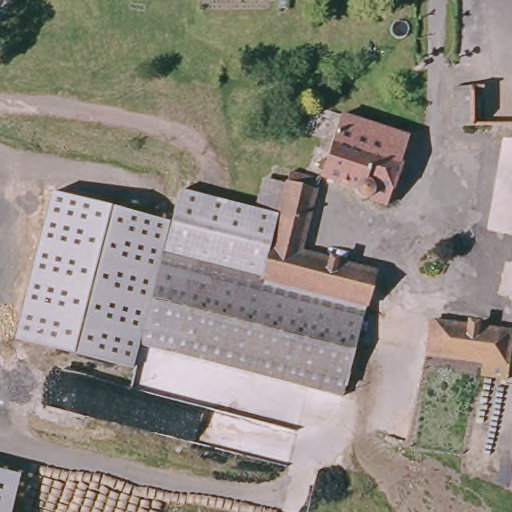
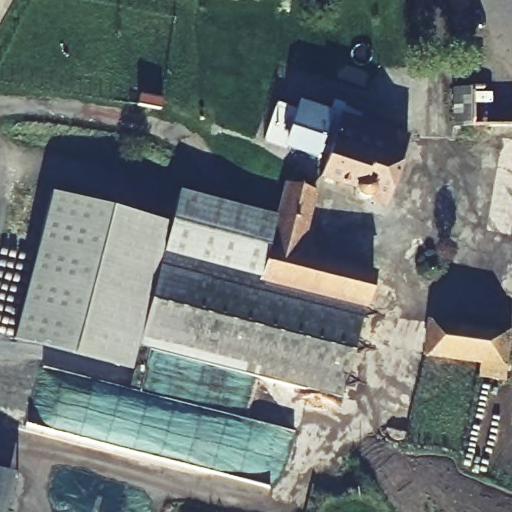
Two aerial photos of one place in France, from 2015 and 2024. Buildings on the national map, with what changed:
unchanged [(485,123),(447,124),(447,77),(488,80),(485,123)]
new [(300,101),(330,110),(332,102),(343,105),(340,115),(329,150),(321,147),(318,156),(316,160),(283,149),(300,101)]
new [(266,139),(277,102),(297,109),(298,102),(302,104),(288,145),(266,139)]
unchanged [(387,204),(370,199),(366,201),(362,201),(357,200),(355,197),(354,194),(355,192),(355,187),(320,175),(325,159),(318,156),(321,147),(329,150),(340,115),(408,135),(387,204)]
unchanged [(277,214),(284,187),(288,174),(317,181),(299,252),(374,272),(365,305),(261,278),(272,240),(277,214)]
unchanged [(125,365),(7,335),(45,189),(163,220),(172,188),(257,209),(277,214),(272,240),(261,278),(160,250),(132,342),(125,365)]
unchanged [(261,278),(365,305),(342,396),(132,342),(160,250),(261,278)]
unchanged [(510,311),(512,302),(512,311),(510,311)]
unchanged [(425,315),(507,326),(502,373),(475,370),(477,355),(421,349),(425,315)]
unchanged [(12,512),(0,512),(0,469),(22,474),(12,512)]

